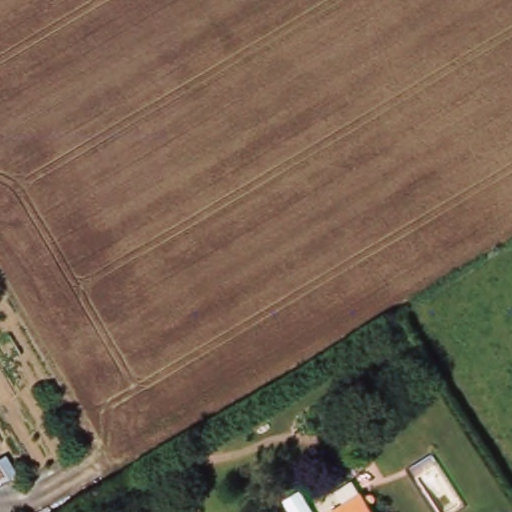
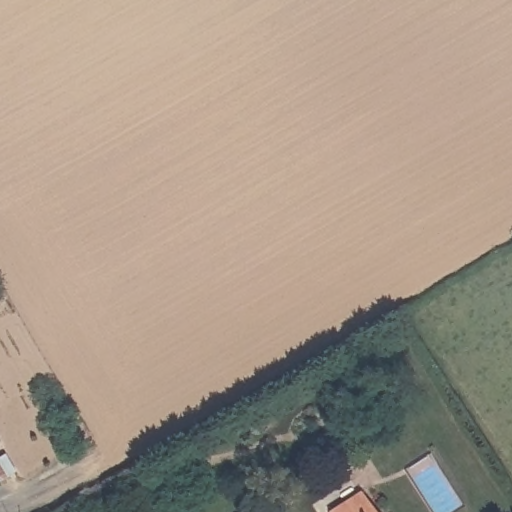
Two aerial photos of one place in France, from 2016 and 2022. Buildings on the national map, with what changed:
unchanged [(360,493),(372,512),(331,512),(360,493)]

